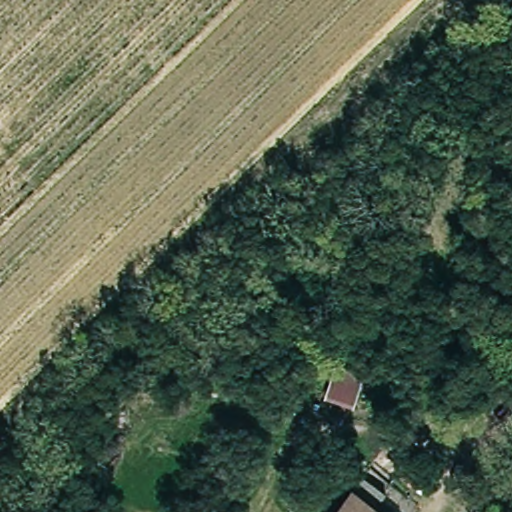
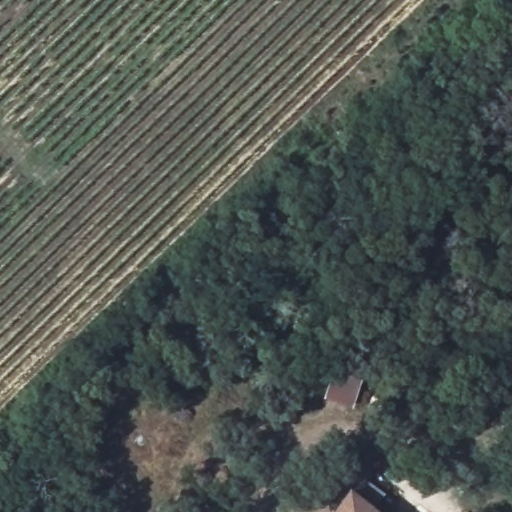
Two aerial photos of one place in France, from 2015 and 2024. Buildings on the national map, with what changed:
unchanged [(387,502),(380,512),(341,512),(362,485),(387,502)]

